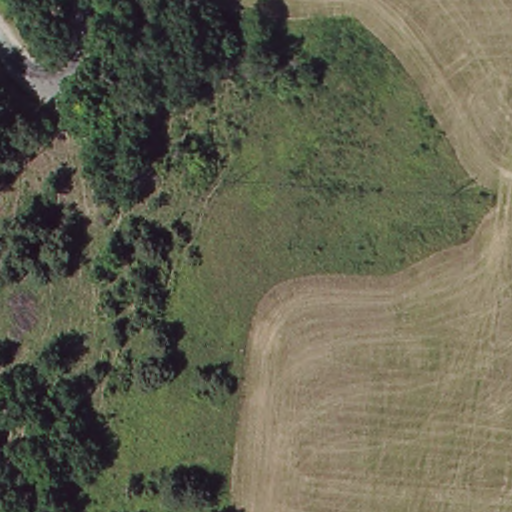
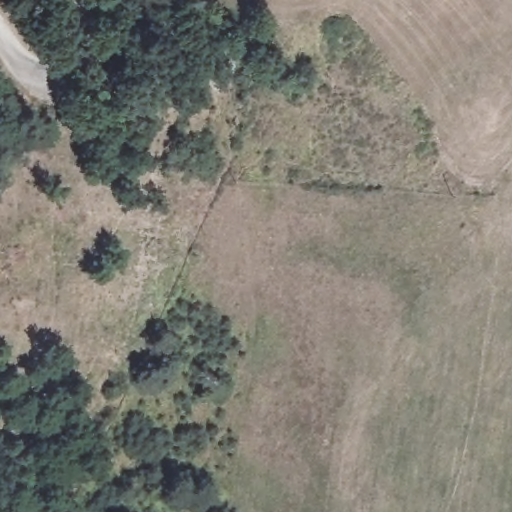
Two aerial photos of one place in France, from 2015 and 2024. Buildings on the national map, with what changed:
[]

